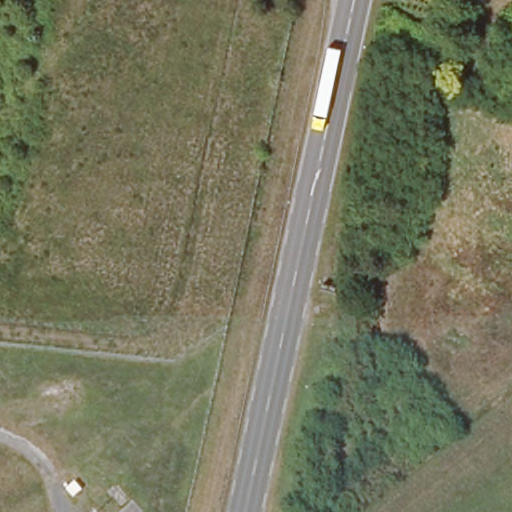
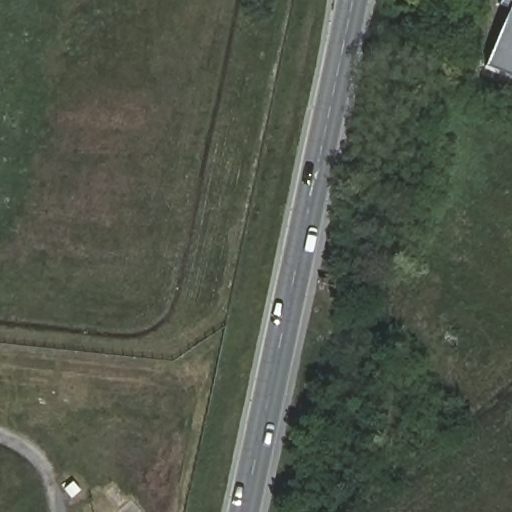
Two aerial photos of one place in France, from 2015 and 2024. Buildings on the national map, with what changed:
new [(509,9),(498,4),(500,0),(512,0),(512,75),(485,65),(509,9)]

